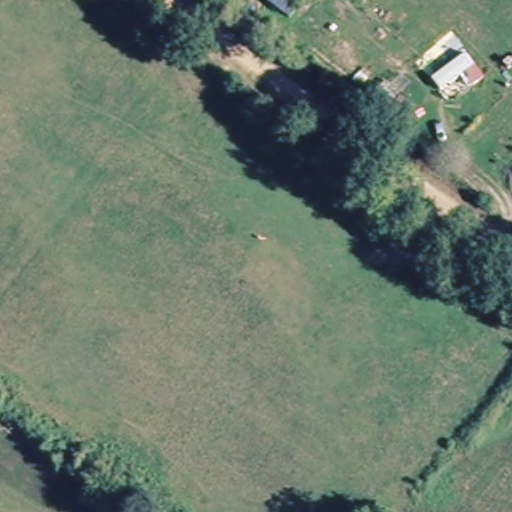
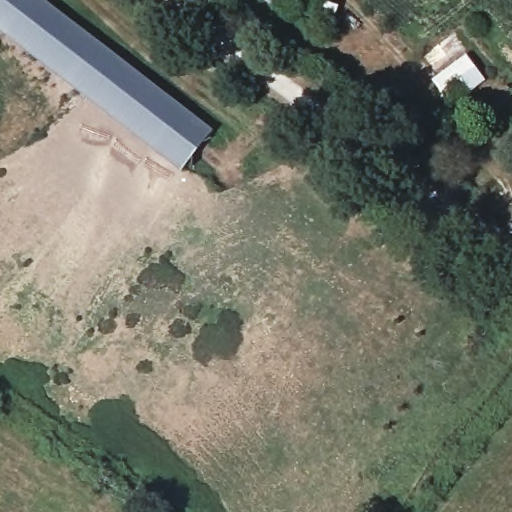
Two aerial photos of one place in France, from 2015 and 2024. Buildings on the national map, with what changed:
new [(0,34),(0,0),(31,0),(197,142),(166,177),(0,34)]
unchanged [(299,7),(291,0),(304,0),(299,7)]

